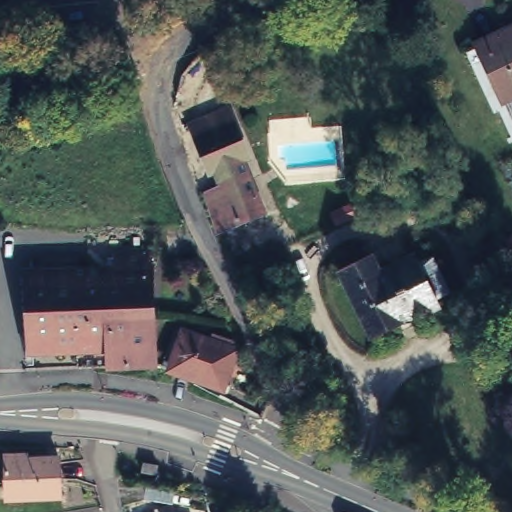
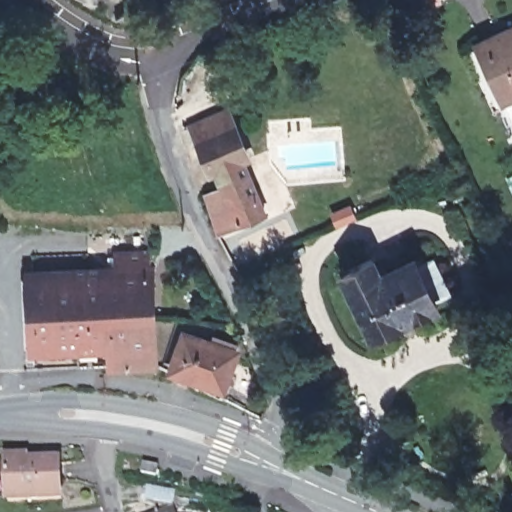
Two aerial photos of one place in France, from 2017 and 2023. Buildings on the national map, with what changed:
unchanged [(512,32),(512,107),(482,46),(512,32)]
unchanged [(227,187),(221,172),(218,174),(203,141),(197,126),(232,112),(238,127),(252,159),(248,161),(271,215),(223,235),(210,195),(227,187)]
unchanged [(285,169),(285,164),(286,163),(278,158),(277,145),(320,142),(339,141),(341,165),(332,166),(285,169)]
unchanged [(30,287),(37,286),(122,284),(120,260),(155,258),(159,371),(117,372),(115,351),(39,352),(32,352),(30,287)]
unchanged [(373,342),(342,278),(372,263),(381,281),(415,266),(417,271),(432,263),(450,300),(435,307),(437,311),(373,342)]
unchanged [(237,346),(225,380),(200,371),(199,374),(172,365),(185,328),(237,346)]
unchanged [(35,461),(35,467),(70,465),(70,503),(17,506),(15,462),(35,461)]
unchanged [(158,466),(157,475),(142,472),(143,462),(158,466)]

